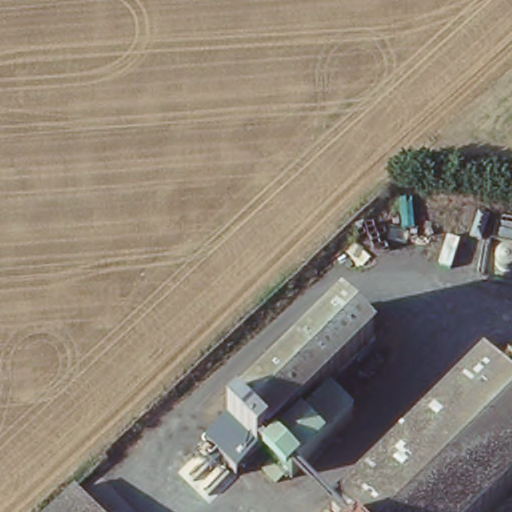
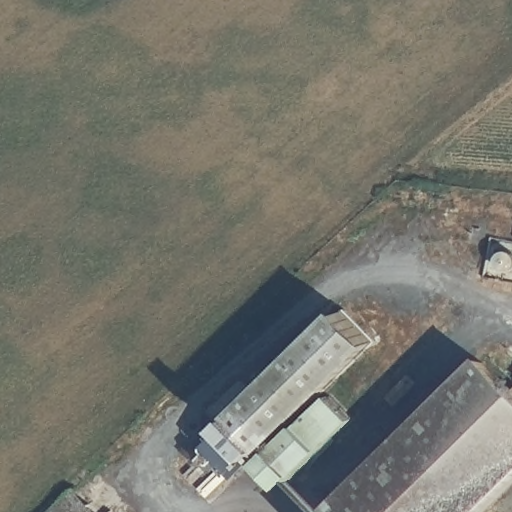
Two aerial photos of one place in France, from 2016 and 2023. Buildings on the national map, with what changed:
unchanged [(242,402),(338,313),(372,347),(294,417),(273,435),(242,402)]
unchanged [(510,390),(512,387),(512,481),(482,512),(337,512),(480,362),(510,390)]
unchanged [(348,425),(285,485),(260,458),(322,398),(348,425)]
unchanged [(273,435),(236,477),(205,447),(242,402),(273,435)]
unchanged [(100,512),(48,512),(75,487),(100,512)]

